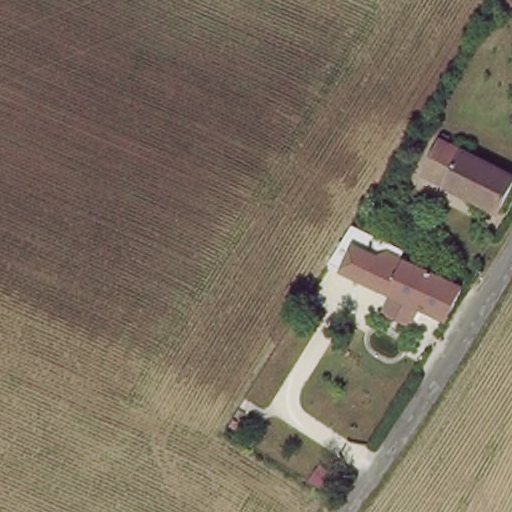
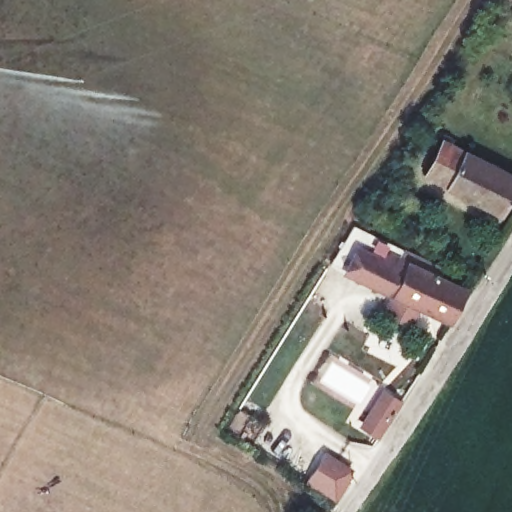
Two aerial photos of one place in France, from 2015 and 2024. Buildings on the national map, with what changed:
unchanged [(512,163),(512,188),(498,214),(424,177),(451,132),(512,163)]
unchanged [(450,322),(421,310),(412,326),(382,311),(389,295),(342,272),(356,242),(380,253),(389,249),(408,258),(468,285),(450,322)]
new [(335,500),(304,482),(324,450),(355,469),(335,500)]

